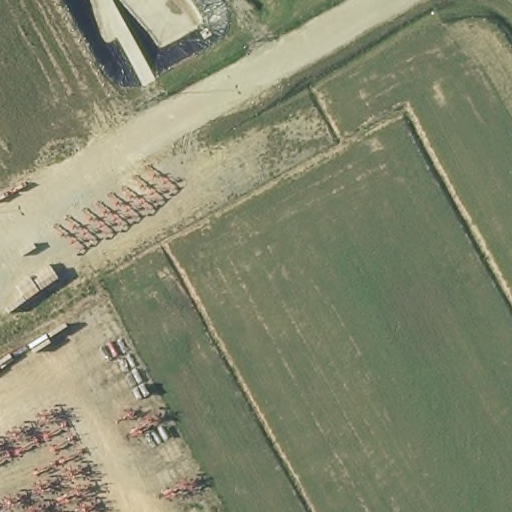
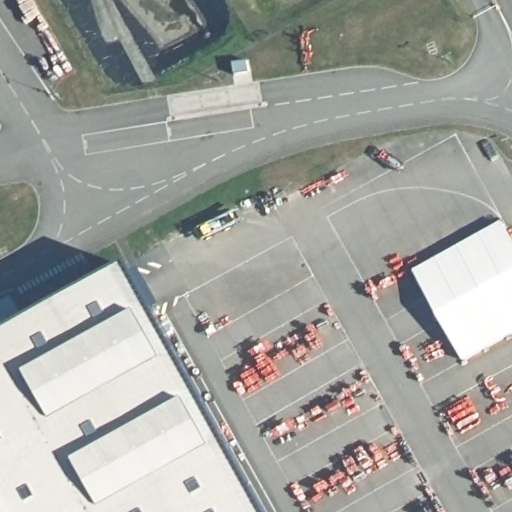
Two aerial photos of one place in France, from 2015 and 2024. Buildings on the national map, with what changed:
new [(501,220),(512,240),(512,335),(463,363),(439,323),(411,271),(501,220)]
new [(269,512),(0,512),(0,344),(134,270),(269,512)]

